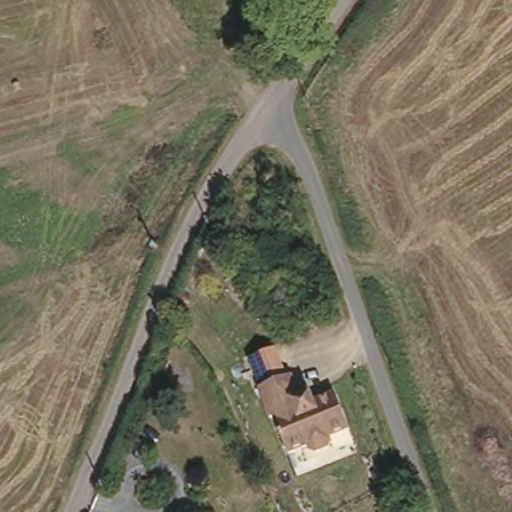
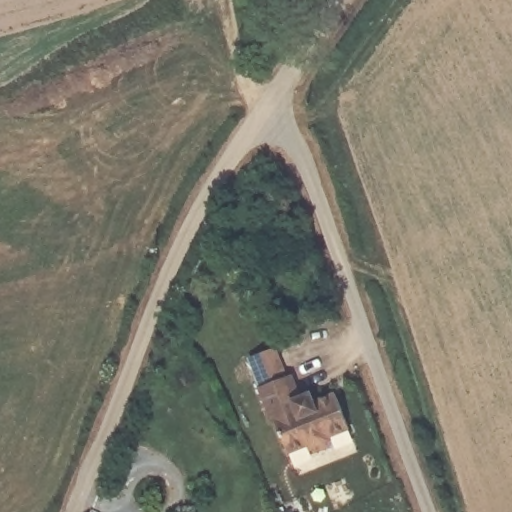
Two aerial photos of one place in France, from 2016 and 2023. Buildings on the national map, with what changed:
unchanged [(349,432),(284,455),(258,385),(298,371),(307,396),(333,389),(349,432)]

